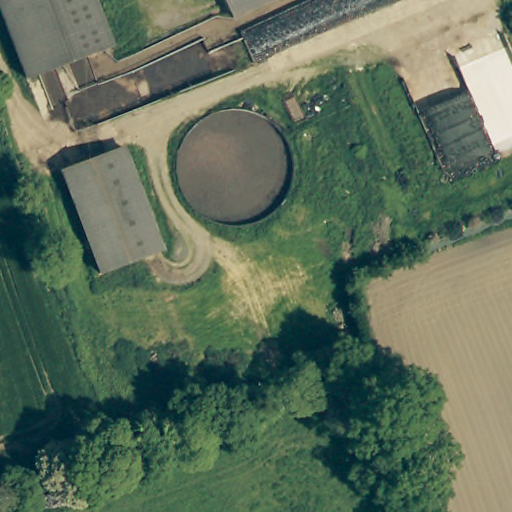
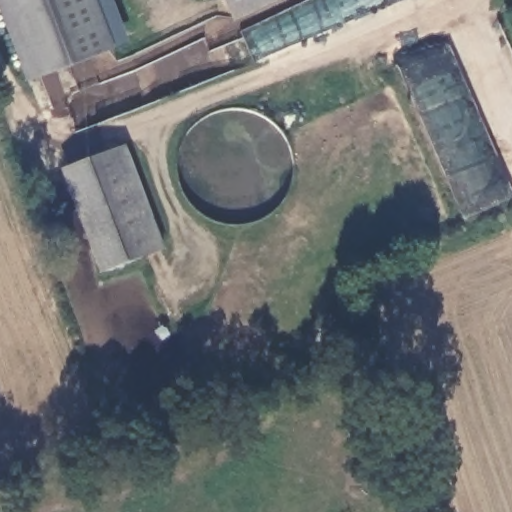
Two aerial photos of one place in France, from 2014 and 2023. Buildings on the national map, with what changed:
unchanged [(93,0),(109,45),(22,75),(0,13),(0,0),(93,0)]
unchanged [(252,0),(230,10),(226,0),(252,0)]
unchanged [(87,249),(94,246),(64,173),(122,148),(162,246),(97,273),(87,249)]

